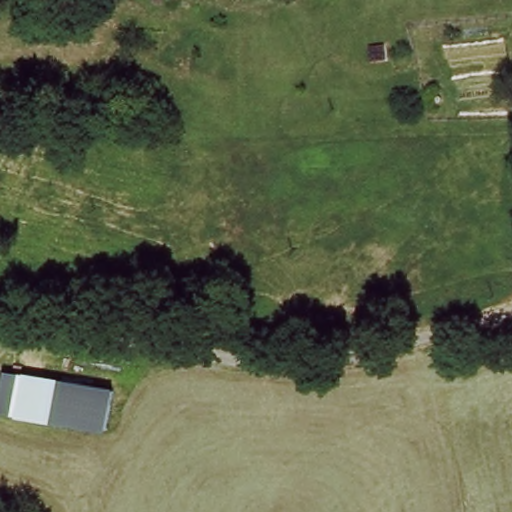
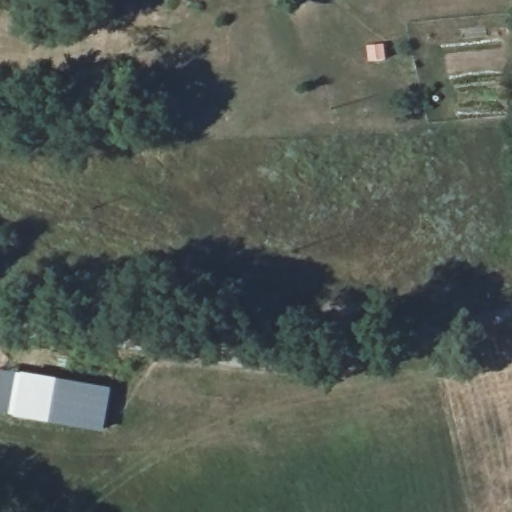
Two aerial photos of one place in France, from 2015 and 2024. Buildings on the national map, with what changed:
unchanged [(106,392),(100,434),(0,417),(0,390),(2,376),(106,392)]

